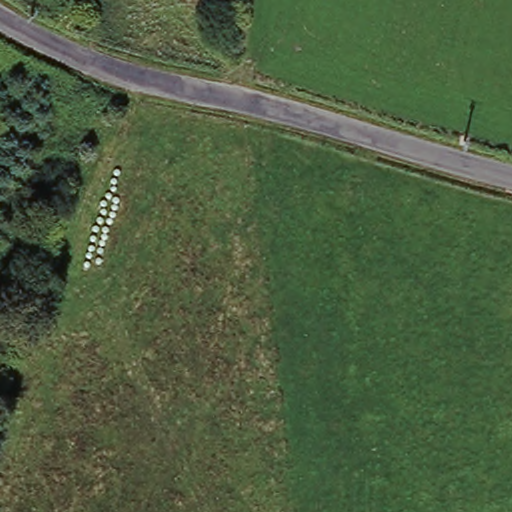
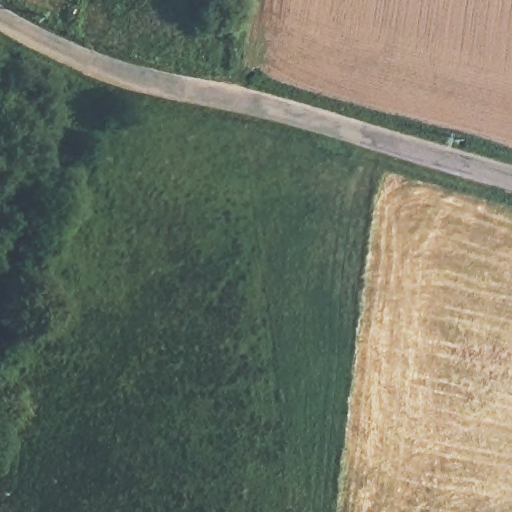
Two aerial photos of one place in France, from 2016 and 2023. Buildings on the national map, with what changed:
[]

